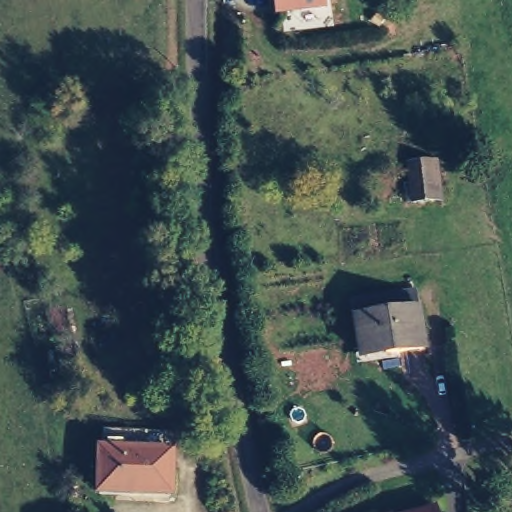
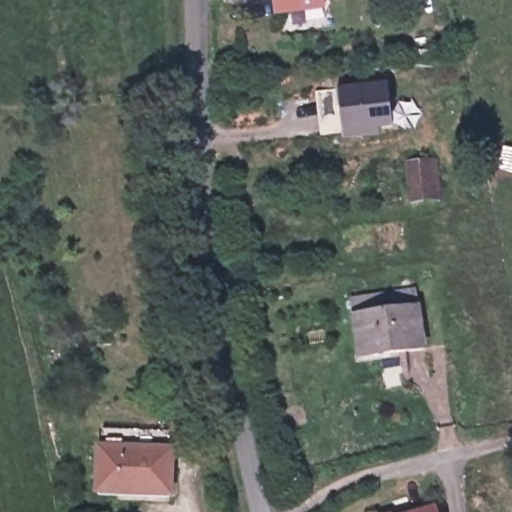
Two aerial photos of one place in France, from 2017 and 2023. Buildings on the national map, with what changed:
unchanged [(277,17),(274,0),(326,0),(327,10),(277,17)]
new [(346,140),(340,90),(387,84),(392,128),(377,130),(378,137),(346,140)]
unchanged [(432,157),(435,198),(432,198),(414,198),(412,157),(425,157),(432,157)]
unchanged [(354,298),(415,289),(417,306),(355,315),(354,298)]
unchanged [(417,306),(424,348),(360,357),(354,316),(355,315),(417,306)]
unchanged [(169,495),(165,495),(97,490),(99,449),(102,449),(103,428),(170,432),(168,452),(170,452),(170,460),(169,495)]
unchanged [(427,503),(429,512),(396,512),(427,503)]

